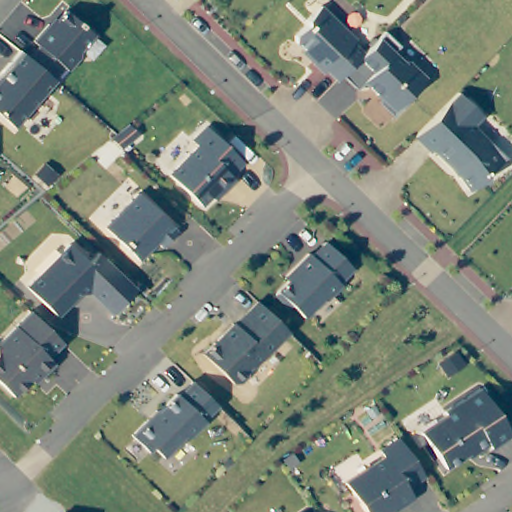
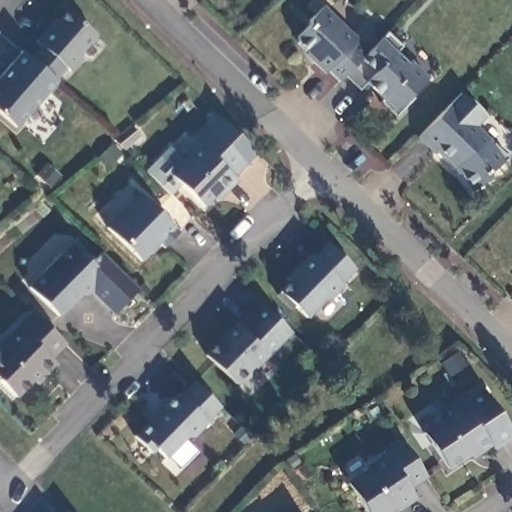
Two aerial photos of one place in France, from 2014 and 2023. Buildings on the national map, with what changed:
unchanged [(358,39),(354,42),(366,53),(361,58),(339,80),(328,69),(325,72),(314,60),(314,55),(298,40),(298,35),(309,24),(309,19),(323,5),(358,39)]
unchanged [(83,50),(84,55),(72,69),(68,65),(58,77),(33,56),(44,44),(38,39),(53,22),(56,25),(69,8),(98,33),(83,50)]
unchanged [(366,53),(384,34),(388,31),(402,45),(396,52),(407,63),(410,60),(428,77),(411,95),(414,97),(395,116),(379,100),(383,97),(366,81),(375,71),(361,58),(366,53)]
unchanged [(0,110),(0,82),(4,78),(0,76),(24,48),(33,56),(58,77),(59,78),(19,125),(0,110)]
unchanged [(460,91),(484,115),(508,157),(487,172),(487,179),(471,189),(459,173),(461,170),(454,166),(435,149),(433,151),(417,135),(460,91)]
unchanged [(194,138),(207,124),(244,160),(232,173),(235,177),(221,192),(217,188),(203,203),(170,172),(199,143),(194,138)]
unchanged [(178,229),(163,245),(158,239),(139,257),(105,224),(139,190),(178,229)]
unchanged [(293,303),(289,306),(276,292),(298,270),(294,267),(309,251),(313,254),(326,240),(353,266),(339,280),(340,282),(326,298),(324,296),(305,315),(293,303)]
unchanged [(69,241),(89,260),(99,250),(136,286),(112,311),(90,289),(89,291),(79,291),(76,288),(70,294),(73,297),(57,313),(28,284),(69,241)]
unchanged [(288,329),(253,365),(251,363),(248,366),(248,372),(239,381),(234,381),(204,352),(234,321),(235,323),(258,300),(288,329)]
unchanged [(49,355),(54,361),(41,374),(37,370),(14,394),(0,380),(0,340),(31,308),(63,340),(49,355)]
unchanged [(205,419),(190,434),(184,434),(164,455),(154,446),(150,450),(133,433),(149,417),(152,420),(160,412),(158,410),(177,391),(179,393),(193,379),(209,394),(218,403),(204,418),(205,419)]
unchanged [(511,433),(491,446),(488,442),(478,449),(472,448),(446,466),(421,430),(447,413),(444,409),(479,386),(511,433)]
unchanged [(384,455),(381,449),(399,437),(399,438),(424,474),(407,486),(413,495),(394,509),(392,506),(383,512),(366,512),(346,481),(384,455)]
unchanged [(66,510),(68,512),(64,512),(66,510)]

